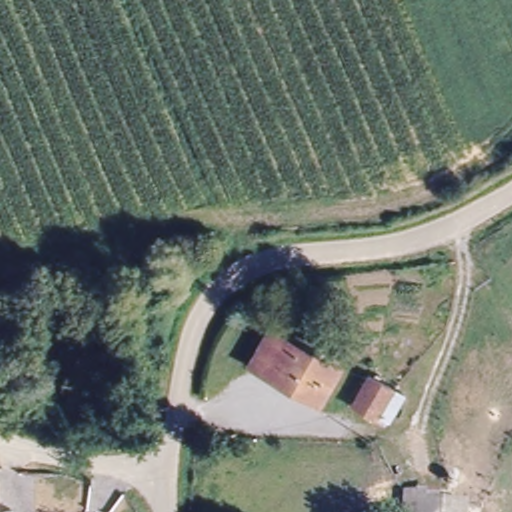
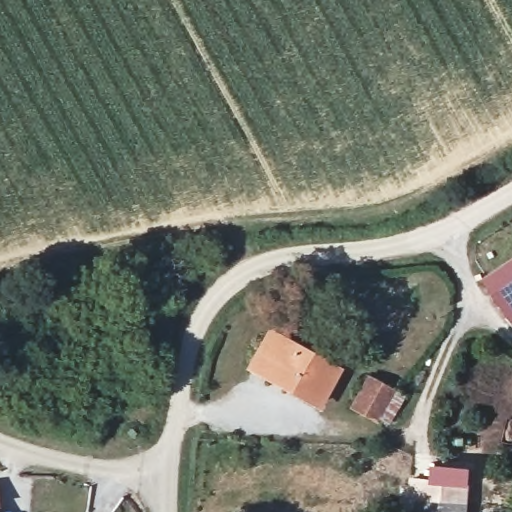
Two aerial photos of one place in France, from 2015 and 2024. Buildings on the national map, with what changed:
new [(512,260),(512,321),(484,279),(512,260)]
unchanged [(263,326),(335,362),(317,397),(244,358),(263,326)]
unchanged [(348,404),(366,374),(391,388),(375,419),(348,404)]
new [(440,498),(440,489),(409,488),(410,477),(431,480),(432,464),(471,467),(470,486),(468,499),(440,498)]
unchanged [(440,498),(468,499),(467,512),(402,512),(403,487),(440,489),(440,498)]

